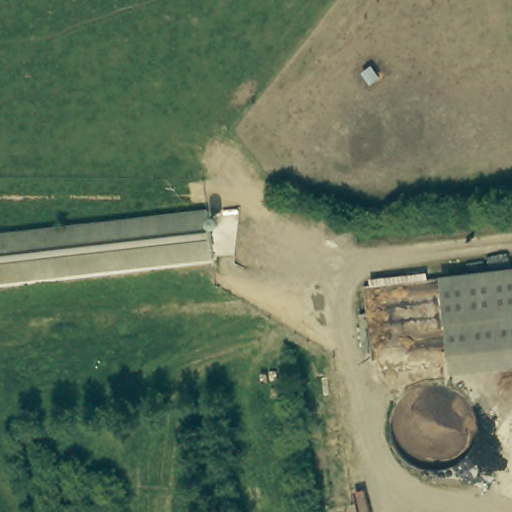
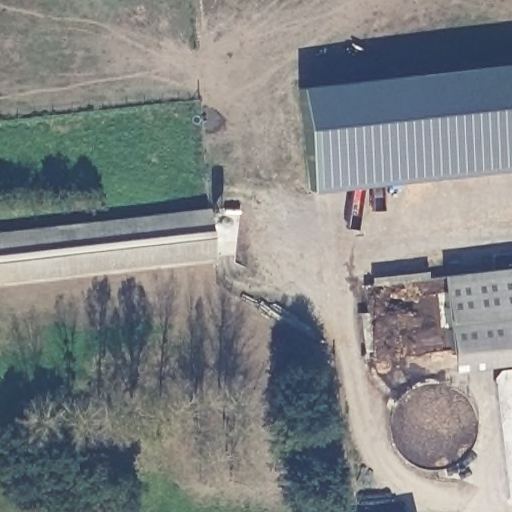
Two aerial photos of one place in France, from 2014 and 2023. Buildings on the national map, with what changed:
new [(512,63),(512,169),(310,191),(299,87),(512,63)]
unchanged [(212,258),(0,281),(0,234),(206,212),(212,258)]
unchanged [(512,267),(512,361),(455,367),(453,349),(445,274),(512,267)]

